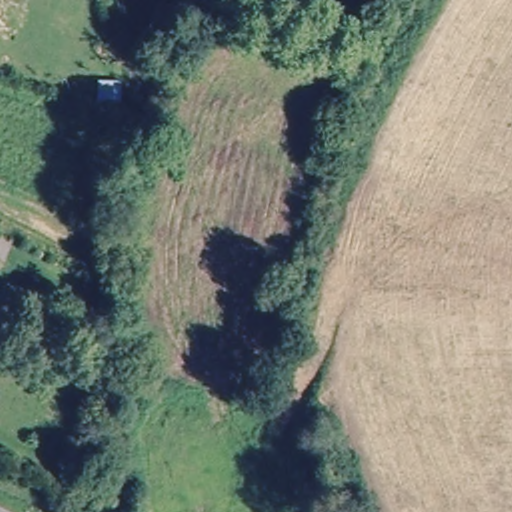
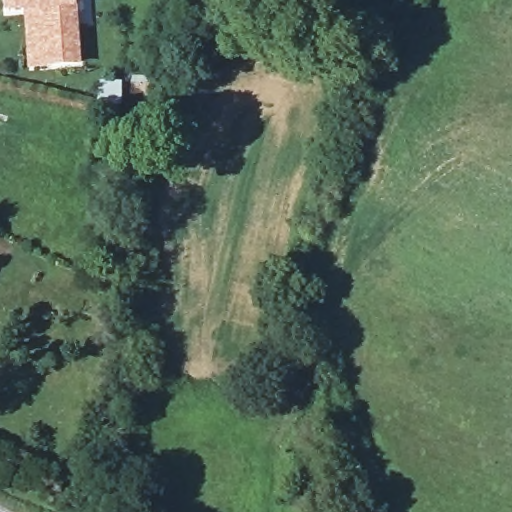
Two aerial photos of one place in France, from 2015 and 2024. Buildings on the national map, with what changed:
new [(82,67),(27,70),(24,13),(5,15),(4,0),(76,0),(82,67)]

